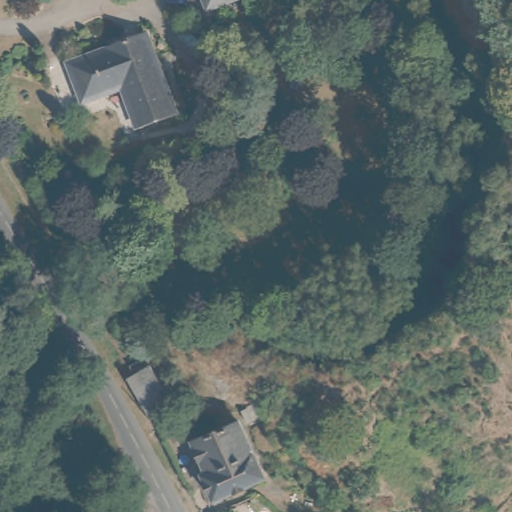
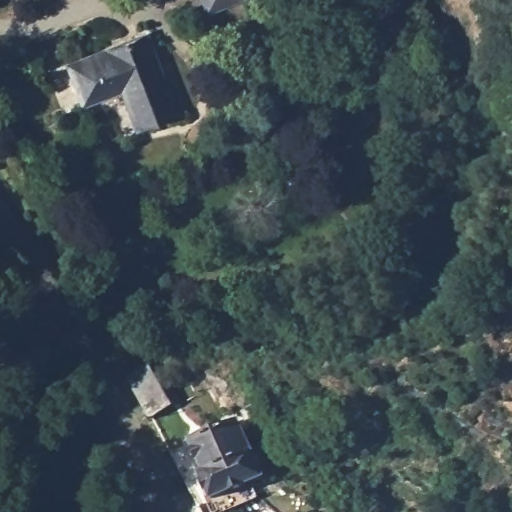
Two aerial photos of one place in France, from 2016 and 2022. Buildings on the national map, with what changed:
unchanged [(201,0),(233,0),(205,10),(201,0)]
unchanged [(148,31),(177,109),(138,123),(123,85),(84,99),(70,60),(148,31)]
unchanged [(172,404),(147,418),(125,378),(142,368),(139,361),(145,358),(172,404)]
unchanged [(238,415),(266,475),(216,499),(202,470),(208,467),(194,437),(238,415)]
unchanged [(422,500),(435,512),(413,512),(422,500)]

